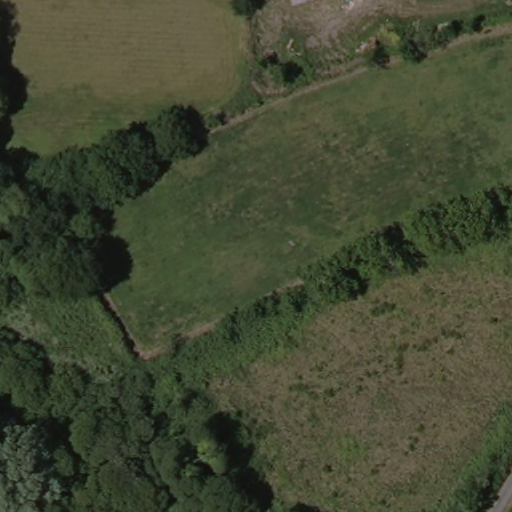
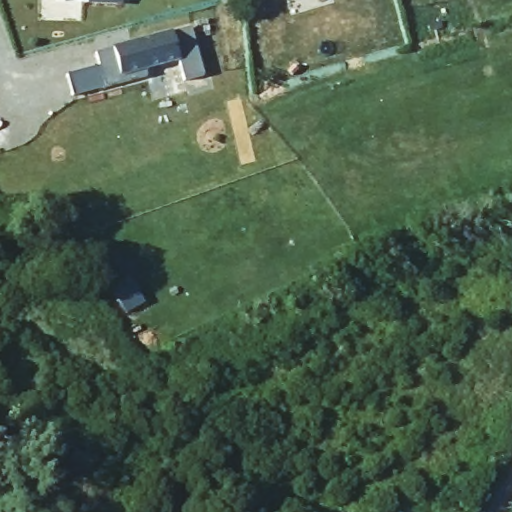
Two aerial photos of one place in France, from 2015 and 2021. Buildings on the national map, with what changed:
new [(57,0),(123,0),(123,5),(57,0)]
new [(69,76),(100,67),(97,54),(113,50),(173,33),(192,27),(204,76),(184,82),(179,62),(146,71),(148,76),(74,96),(69,76)]

